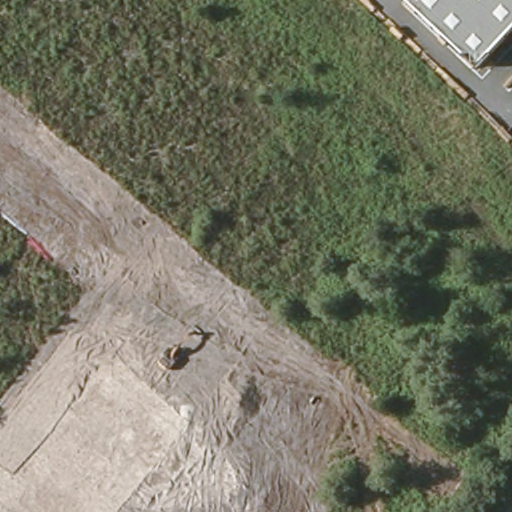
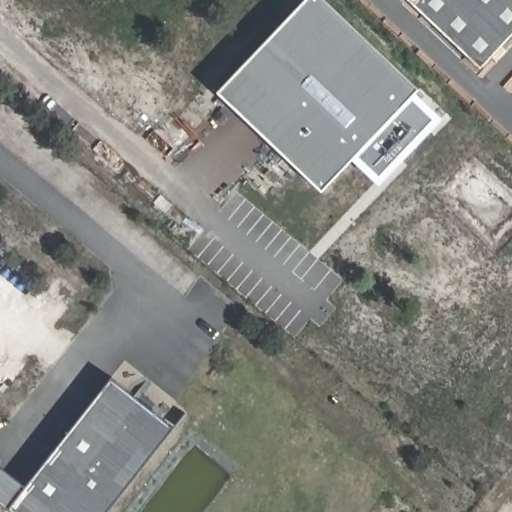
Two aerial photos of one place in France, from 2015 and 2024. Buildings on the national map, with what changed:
new [(443,118),(379,185),(353,159),(323,192),(218,92),(303,0),(327,0),(420,89),(417,91),(443,118)]
unchanged [(410,0),(512,0),(512,36),(482,68),(410,0)]
new [(108,512),(13,512),(0,502),(0,466),(27,487),(112,378),(175,427),(108,512)]

